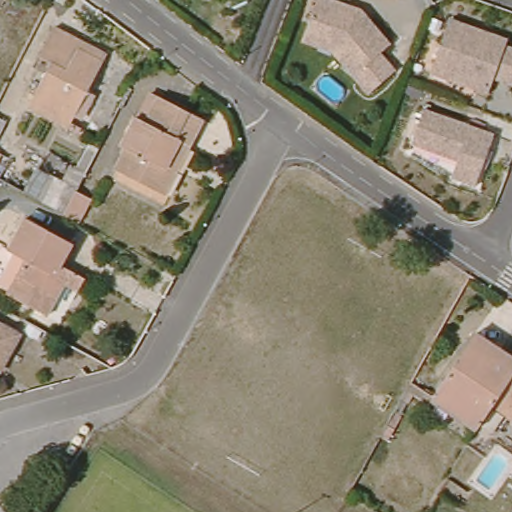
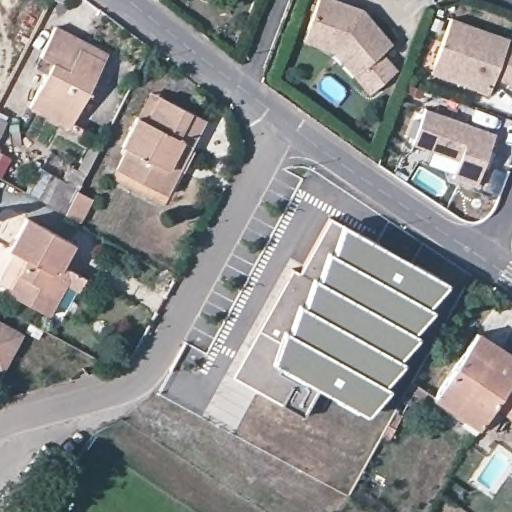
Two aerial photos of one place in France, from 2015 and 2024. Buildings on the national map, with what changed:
unchanged [(307,37),(311,25),(320,0),(347,0),(365,6),(395,40),(385,50),(400,67),(374,90),(358,71),(337,47),(307,37)]
unchanged [(508,41),(512,43),(512,80),(495,74),(490,89),(432,66),(452,12),(510,35),(508,41)]
unchanged [(37,55),(52,24),(81,39),(105,50),(100,58),(67,125),(26,105),(48,60),(37,55)]
unchanged [(158,187),(120,166),(130,147),(125,144),(140,115),(150,120),(163,94),(206,116),(192,144),(167,191),(158,187)]
unchanged [(496,130),(477,181),(453,172),(460,155),(413,139),(425,104),(496,130)]
unchanged [(2,156),(0,160),(0,155),(2,156)]
unchanged [(62,211),(75,189),(88,195),(76,219),(62,211)]
unchanged [(72,281),(62,277),(45,311),(5,290),(23,255),(5,246),(22,212),(66,235),(55,256),(70,263),(78,267),(72,281)]
new [(232,377),(292,270),(300,275),(330,219),(342,224),(447,282),(427,305),(433,309),(412,332),(418,335),(397,357),(403,361),(381,385),(388,388),(367,414),(319,387),(303,415),(232,377)]
unchanged [(22,333),(2,369),(0,368),(0,322),(22,333)]
unchanged [(470,340),(474,332),(486,340),(512,357),(512,370),(489,405),(474,425),(432,395),(470,340)]
unchanged [(512,423),(505,418),(507,415),(489,405),(512,370),(512,423)]

